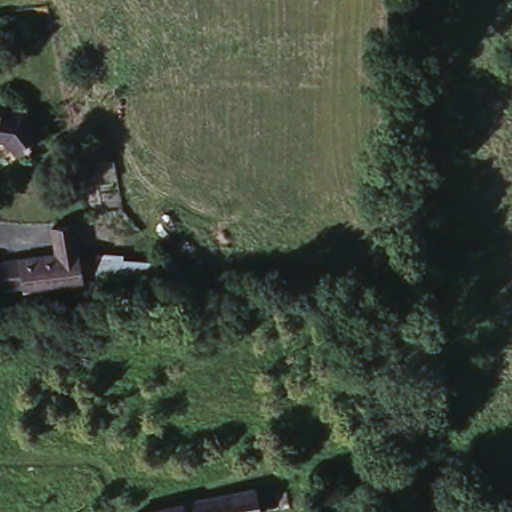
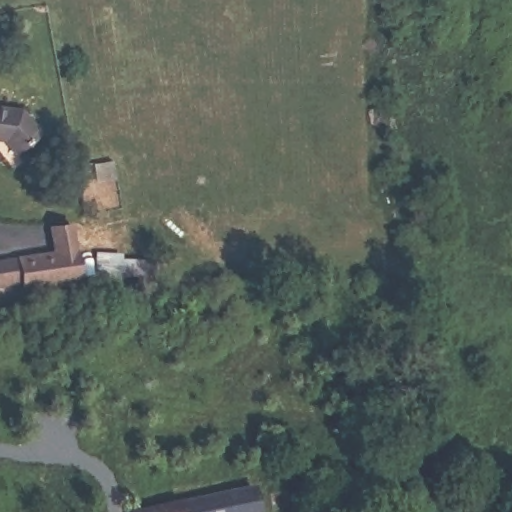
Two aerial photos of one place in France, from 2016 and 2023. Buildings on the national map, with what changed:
unchanged [(19,107),(37,130),(15,150),(5,137),(0,137),(0,106),(19,107)]
unchanged [(20,257),(56,247),(55,242),(50,221),(69,216),(75,237),(84,272),(28,287),(25,279),(0,286),(0,262),(20,257)]
unchanged [(121,273),(120,281),(95,279),(98,249),(157,254),(155,275),(121,273)]
unchanged [(263,512),(189,512),(186,497),(259,482),(263,512)]
unchanged [(136,512),(135,507),(186,497),(189,512),(136,512)]

